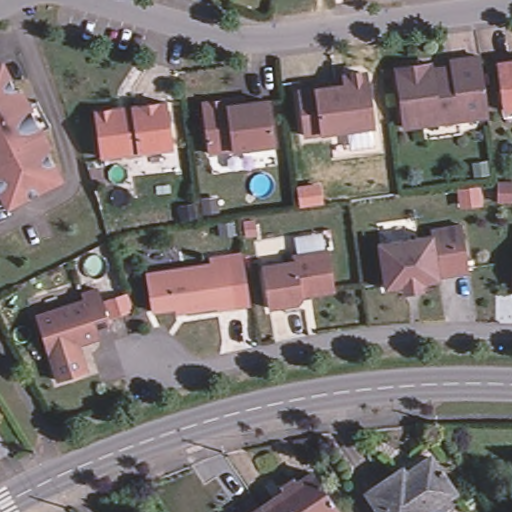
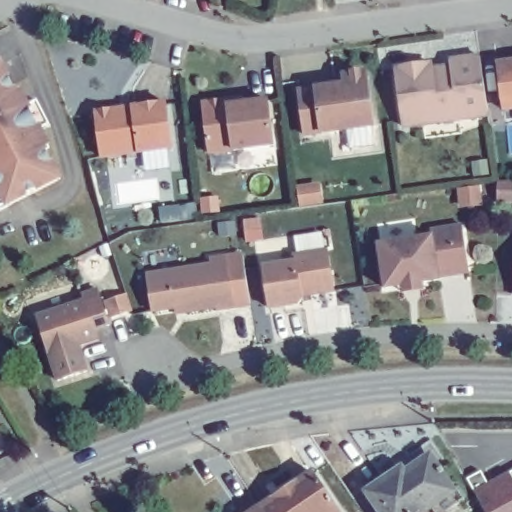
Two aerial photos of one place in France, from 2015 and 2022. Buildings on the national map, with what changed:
unchanged [(17,87),(14,89),(20,102),(27,99),(49,144),(45,146),(60,176),(6,202),(0,189),(0,55),(1,55),(17,87)]
unchanged [(459,119),(458,111),(422,115),(423,123),(403,126),(395,65),(416,62),(417,68),(452,65),(451,58),(481,55),(488,115),(459,119)]
unchanged [(505,106),(500,59),(512,57),(512,104),(505,106)]
unchanged [(318,90),(317,84),(352,81),(357,72),(365,71),(372,77),(378,127),(310,136),(304,91),(318,90)]
unchanged [(278,140),(213,148),(206,102),(210,97),(225,95),(248,92),(248,97),(272,95),(278,140)]
unchanged [(167,100),(175,146),(103,154),(97,107),(167,100)]
unchanged [(402,293),(402,286),(385,288),(378,246),(432,237),(431,230),(462,225),(470,272),(437,277),(437,281),(421,283),(422,291),(402,293)]
unchanged [(299,262),(298,255),(332,251),(338,291),(317,295),(315,289),(307,291),(307,298),(303,306),(273,309),(267,266),(299,262)]
unchanged [(198,263),(197,257),(232,252),(237,291),(240,305),(206,310),(205,307),(173,312),(173,307),(140,311),(135,272),(198,263)]
unchanged [(87,297),(85,292),(100,287),(111,322),(97,327),(100,337),(85,342),(84,340),(80,341),(89,370),(60,378),(38,312),(87,297)]
unchanged [(437,512),(433,507),(426,512),(381,512),(368,492),(429,455),(455,494),(461,506),(451,512),(437,512)]
new [(468,478),(482,471),(489,483),(512,471),(512,512),(486,512),(475,491),(468,478)]
unchanged [(316,475),(340,512),(267,512),(264,507),(316,475)]
unchanged [(256,497),(263,508),(264,507),(267,512),(242,512),(240,507),(256,497)]

